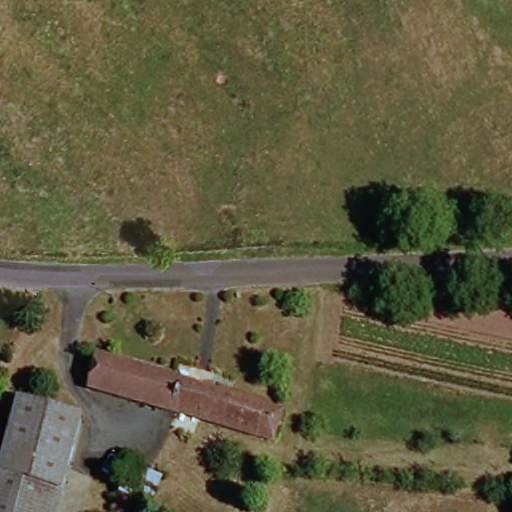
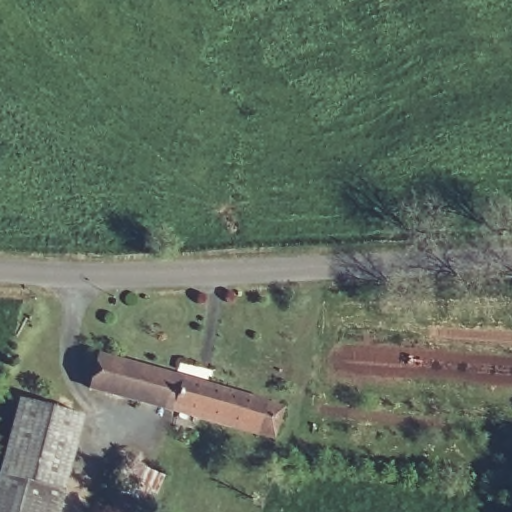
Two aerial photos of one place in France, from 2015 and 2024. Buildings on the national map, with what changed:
unchanged [(279,441),(205,419),(94,390),(102,359),(282,409),(289,411),(279,441)]
unchanged [(22,406),(54,415),(84,424),(66,489),(64,496),(3,478),(22,406)]
unchanged [(158,505),(139,501),(135,512),(131,512),(119,509),(132,466),(167,474),(158,505)]
unchanged [(59,512),(0,512),(0,487),(3,478),(64,496),(59,512)]

